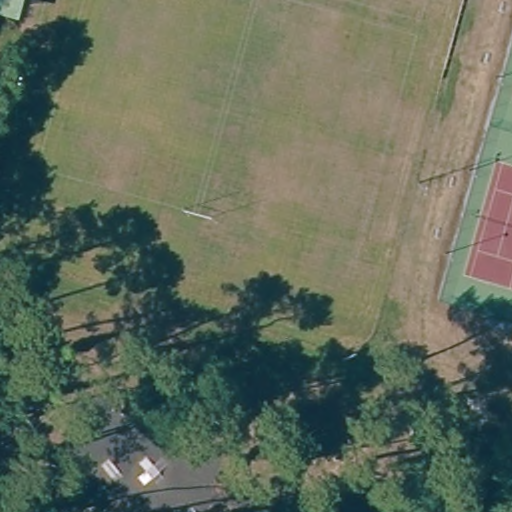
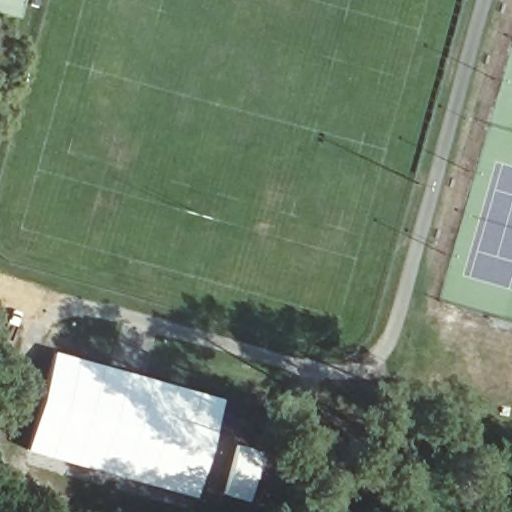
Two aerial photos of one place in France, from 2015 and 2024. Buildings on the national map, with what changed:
unchanged [(16,15),(0,10),(0,0),(20,0),(16,15)]
new [(196,497),(27,450),(55,352),(224,399),(196,497)]

